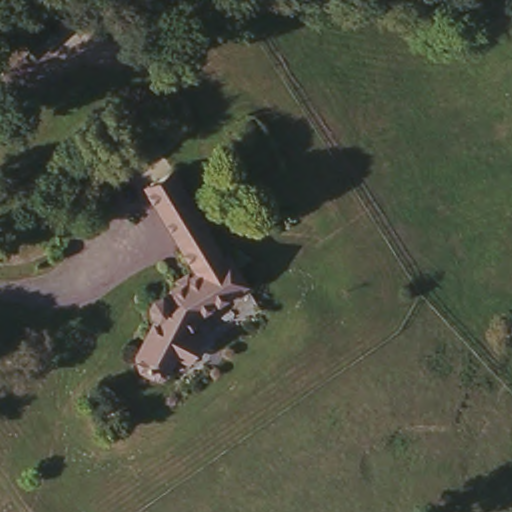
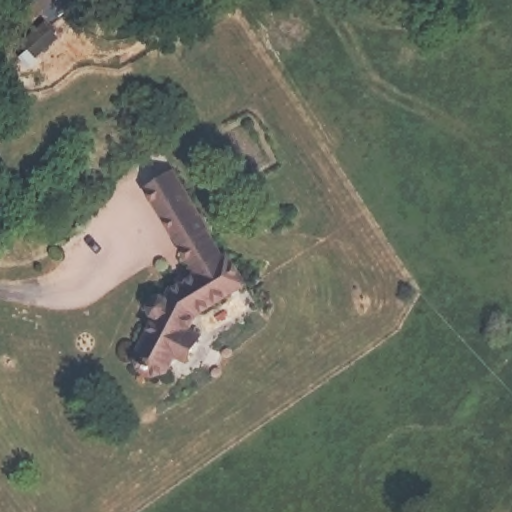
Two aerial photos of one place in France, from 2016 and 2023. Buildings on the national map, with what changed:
unchanged [(174,167),(207,225),(205,227),(221,255),(228,251),(244,280),(198,305),(187,324),(196,330),(184,355),(175,350),(165,367),(154,372),(139,362),(137,348),(156,309),(151,306),(149,302),(149,298),(150,294),(155,292),(159,292),(166,294),(170,284),(179,279),(175,271),(185,265),(190,273),(194,269),(146,183),(174,167)]

